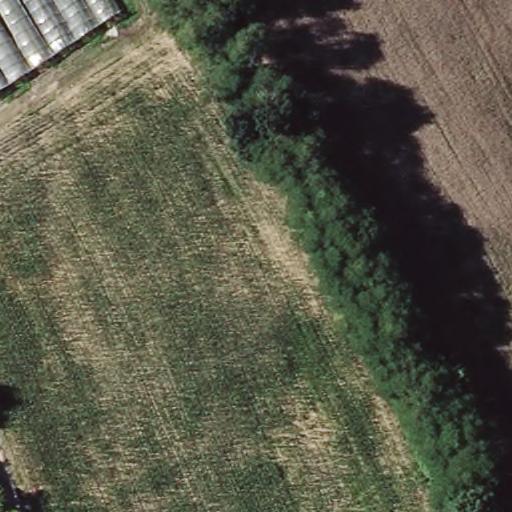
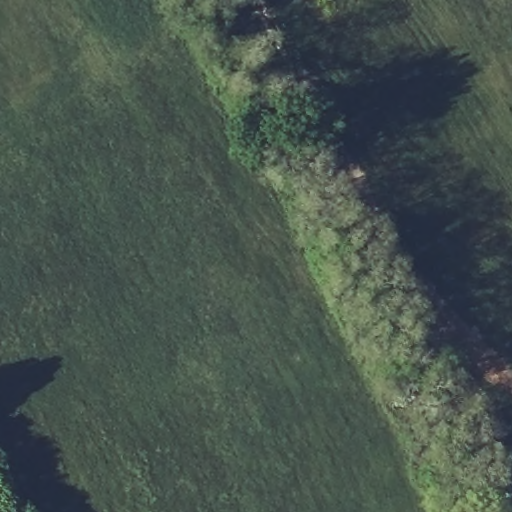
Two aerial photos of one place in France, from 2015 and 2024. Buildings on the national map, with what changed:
demolished [(0,91),(0,0),(108,0),(118,17),(0,91)]

